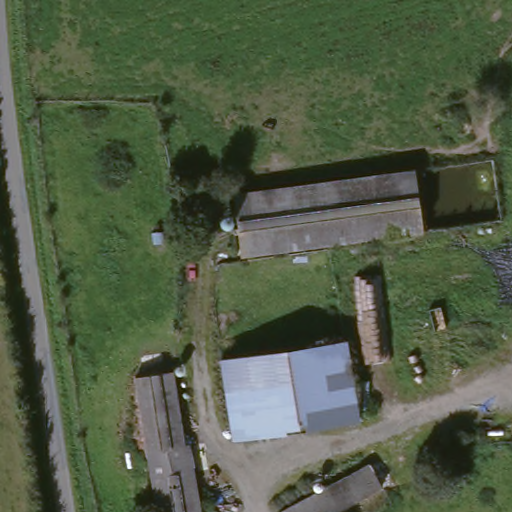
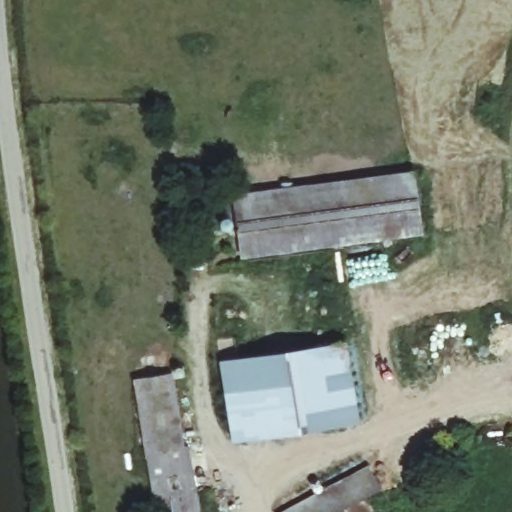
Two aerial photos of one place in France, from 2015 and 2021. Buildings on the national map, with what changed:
unchanged [(229,195),(407,173),(415,239),(235,259),(229,195)]
unchanged [(280,355),(278,340),(302,336),(305,351),(316,349),(329,347),(339,346),(353,425),(227,444),(214,365),(280,355)]
unchanged [(176,452),(140,457),(129,378),(165,372),(176,452)]
unchanged [(283,512),(364,470),(376,492),(338,512),(283,512)]
unchanged [(186,475),(192,512),(149,512),(145,481),(186,475)]

